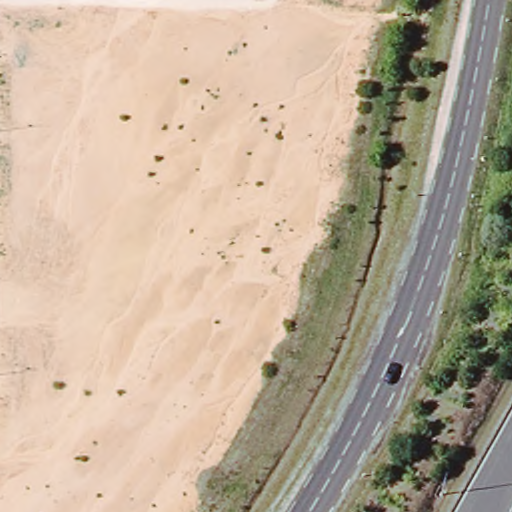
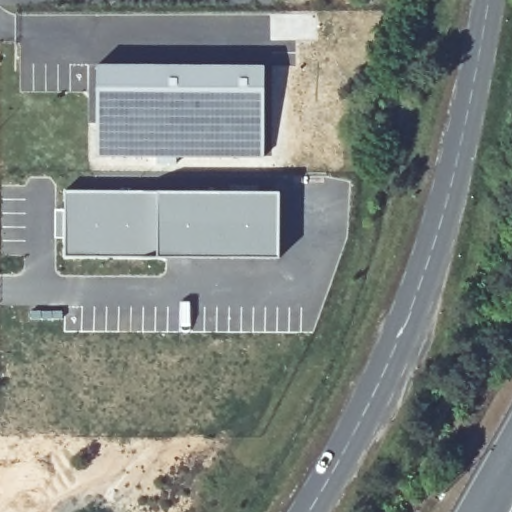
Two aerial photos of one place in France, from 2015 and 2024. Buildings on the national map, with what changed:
new [(99,63),(263,67),(262,154),(97,150),(99,63)]
new [(55,208),(63,208),(63,188),(281,190),(281,257),(157,258),(64,256),(63,238),(55,238),(55,208)]

